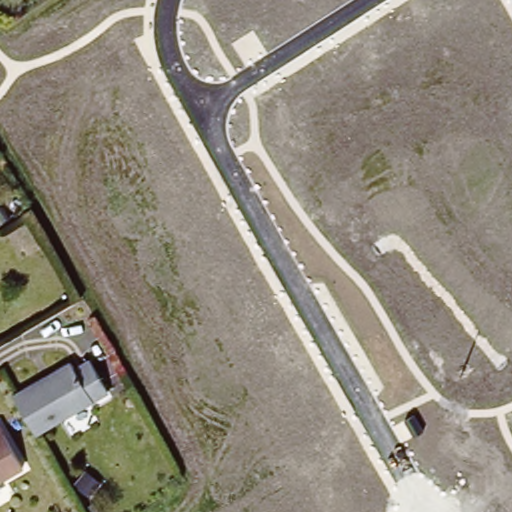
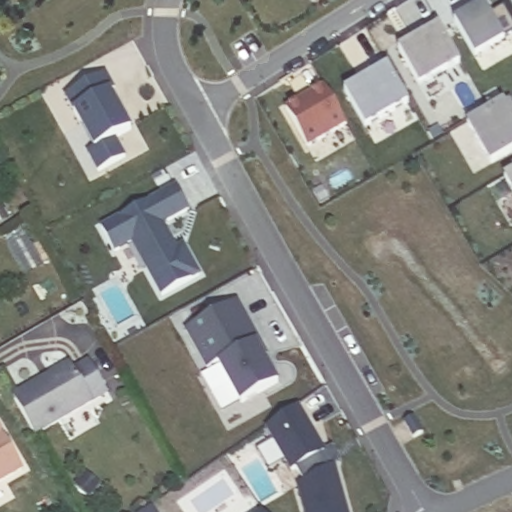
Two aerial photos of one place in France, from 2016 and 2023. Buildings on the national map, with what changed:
new [(474,55),(454,20),(484,2),(491,15),(503,7),(512,22),(512,33),(503,38),(474,55)]
new [(419,85),(397,48),(439,24),(459,61),(419,85)]
new [(106,73),(114,87),(110,92),(131,129),(114,139),(125,156),(97,171),(87,151),(94,149),(73,110),(65,95),(106,73)]
new [(308,147),(286,108),(324,86),(348,124),(308,147)]
new [(505,100),(510,97),(512,100),(512,151),(489,163),(468,122),(505,100)]
new [(512,191),(503,176),(512,171),(512,191)]
new [(176,185),(189,211),(165,224),(178,247),(186,243),(201,274),(161,296),(133,243),(114,252),(100,225),(176,185)]
new [(239,301),(268,355),(264,358),(279,381),(239,403),(217,362),(206,368),(186,330),(239,301)]
unchanged [(42,435),(20,398),(48,381),(51,384),(58,380),(55,377),(75,365),(79,372),(95,362),(113,392),(42,435)]
new [(301,405),(327,449),(333,445),(341,459),(335,464),(348,512),(305,512),(297,485),(305,481),(296,467),(291,470),(266,427),(301,405)]
unchanged [(0,483),(0,424),(25,468),(0,483)]
unchanged [(86,511),(77,494),(91,486),(101,503),(86,511)]
new [(261,510),(263,512),(259,512),(261,510)]

